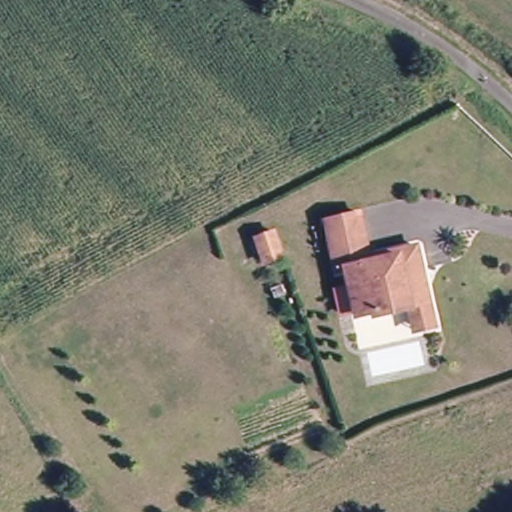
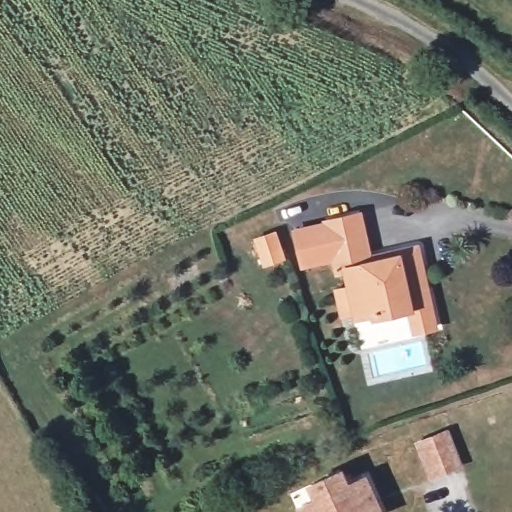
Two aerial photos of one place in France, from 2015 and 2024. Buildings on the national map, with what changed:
unchanged [(412,305),(377,312),(377,305),(358,308),(349,266),(334,269),(333,261),(324,223),(363,213),(375,259),(399,254),(398,245),(422,239),(435,300),(440,321),(416,327),(412,305)]
new [(324,223),(333,261),(302,268),(293,230),(324,223)]
unchanged [(280,228),(287,254),(260,260),(253,233),(280,228)]
new [(430,479),(415,441),(447,429),(463,468),(430,479)]
new [(314,498),(308,485),(345,468),(350,482),(368,473),(385,512),(298,512),(296,507),(314,498)]

